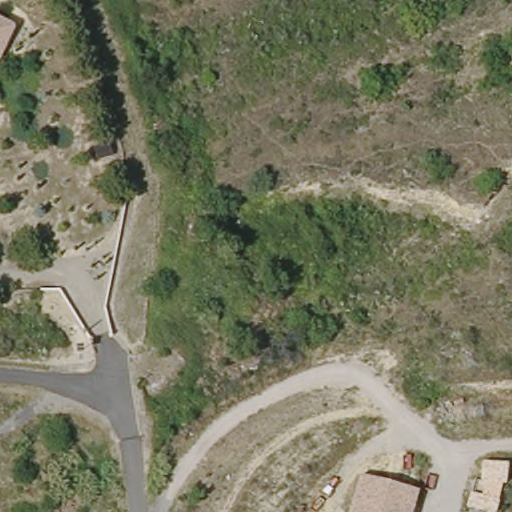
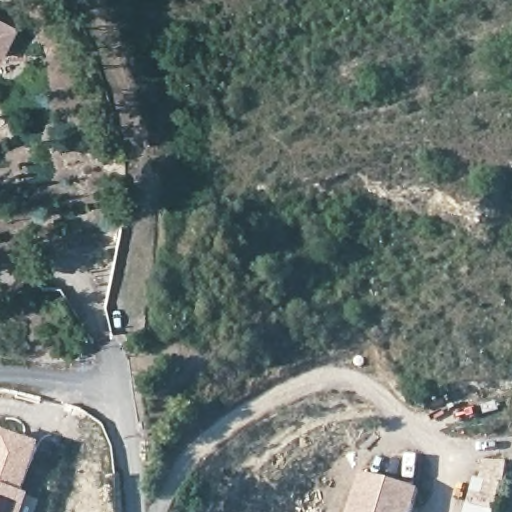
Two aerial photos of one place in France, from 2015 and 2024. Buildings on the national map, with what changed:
unchanged [(10,32),(0,47),(0,28),(10,32)]
unchanged [(283,199),(295,200),(293,217),(282,217),(283,199)]
new [(0,429),(42,444),(23,493),(0,485),(0,430),(0,429)]
unchanged [(470,493),(482,495),(483,481),(479,480),(482,461),(510,464),(507,485),(502,485),(498,512),(483,512),(466,508),(470,493)]
unchanged [(420,491),(413,512),(350,512),(361,476),(420,491)]
new [(23,493),(31,496),(25,512),(0,512),(0,485),(23,493)]

